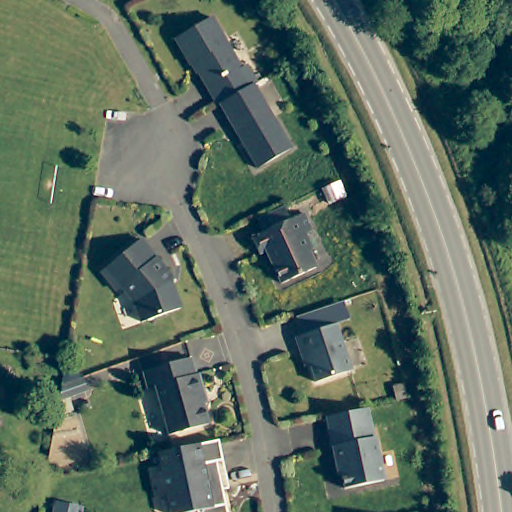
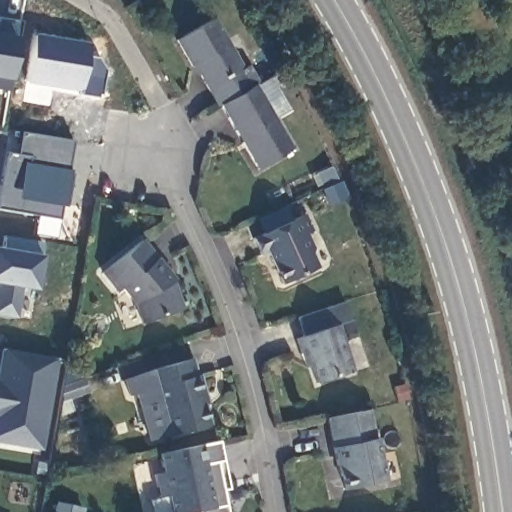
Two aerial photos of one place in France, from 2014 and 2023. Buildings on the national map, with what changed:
unchanged [(223,104),(221,105),(197,63),(194,64),(179,38),(216,17),(245,68),(250,65),(260,82),(257,84),(223,104)]
new [(13,93),(0,91),(0,19),(25,23),(13,93)]
unchanged [(223,104),(257,84),(295,149),(260,169),(244,141),(240,135),(223,104)]
new [(9,154),(20,157),(24,135),(77,143),(72,175),(76,176),(73,198),(68,197),(64,222),(0,211),(9,154)]
unchanged [(313,229),(305,232),(312,247),(310,252),(316,266),(281,282),(266,249),(259,252),(252,236),(263,231),(257,217),(285,204),(291,218),(305,212),(313,229)]
new [(6,238),(45,245),(38,291),(24,289),(18,319),(0,316),(0,292),(1,284),(0,284),(0,252),(4,253),(6,238)]
unchanged [(166,272),(176,292),(180,312),(141,325),(137,309),(132,300),(124,291),(117,295),(102,272),(143,241),(166,272)]
unchanged [(297,355),(293,340),(336,324),(353,374),(317,387),(310,367),(302,370),(297,355)]
new [(0,443),(0,355),(1,349),(58,358),(42,451),(0,443)]
unchanged [(201,377),(205,376),(209,393),(205,394),(211,427),(170,437),(158,389),(148,391),(144,373),(195,359),(201,377)]
unchanged [(94,396),(67,405),(70,388),(89,382),(94,396)]
unchanged [(378,437),(382,442),(388,484),(348,492),(342,465),(338,466),(328,418),(372,409),(378,437)]
unchanged [(219,464),(229,512),(172,512),(168,497),(158,499),(153,475),(163,473),(160,453),(222,442),(226,463),(219,464)]

